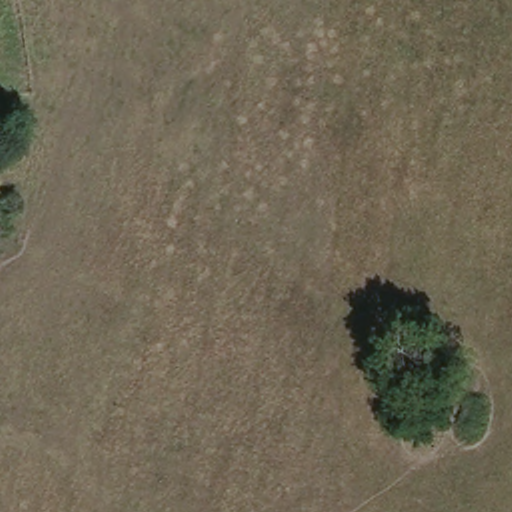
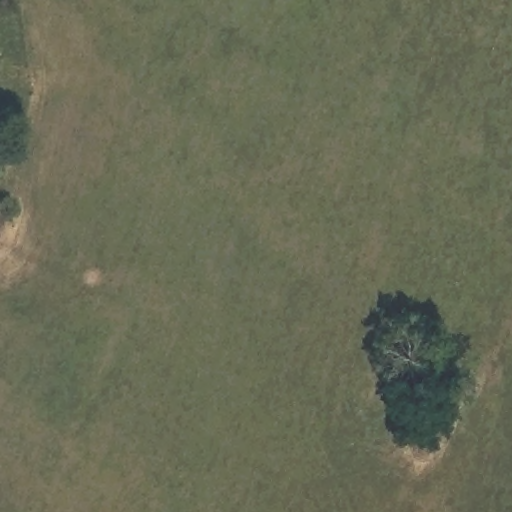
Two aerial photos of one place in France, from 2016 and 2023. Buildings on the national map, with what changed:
[]

